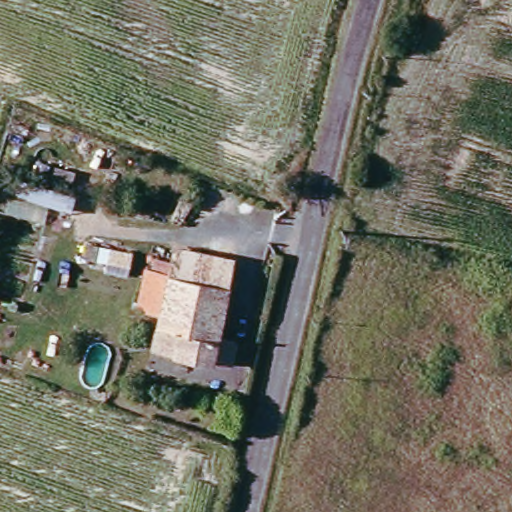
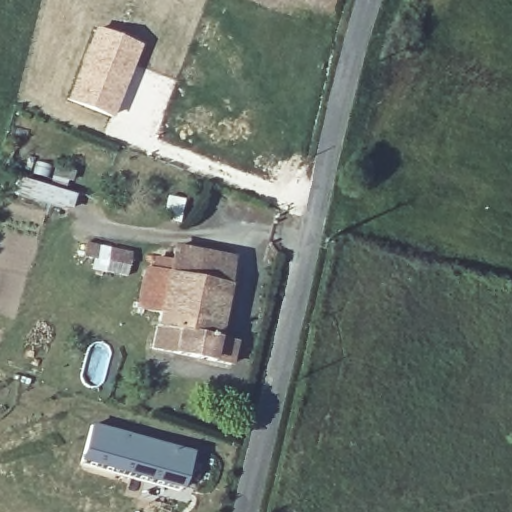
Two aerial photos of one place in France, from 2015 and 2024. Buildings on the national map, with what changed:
new [(92,28),(140,46),(112,116),(65,100),(92,28)]
new [(74,195),(70,211),(16,197),(21,180),(74,195)]
unchanged [(150,258),(165,262),(169,247),(228,261),(222,288),(158,274),(149,264),(150,258)]
unchanged [(207,360),(149,349),(157,312),(132,306),(139,271),(147,272),(149,264),(158,274),(222,288),(207,360)]
new [(89,425),(163,444),(191,454),(182,486),(176,484),(176,482),(161,477),(159,484),(78,461),(89,425)]

